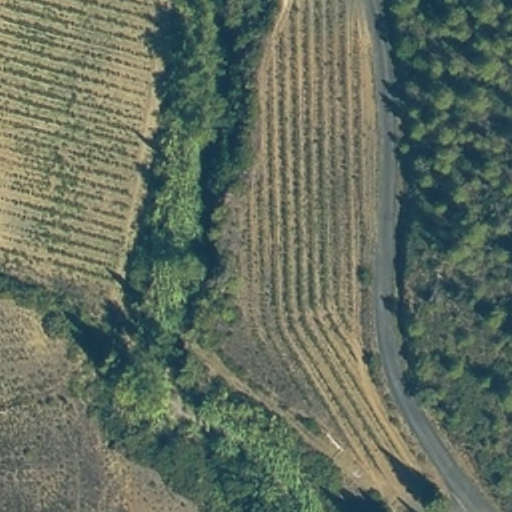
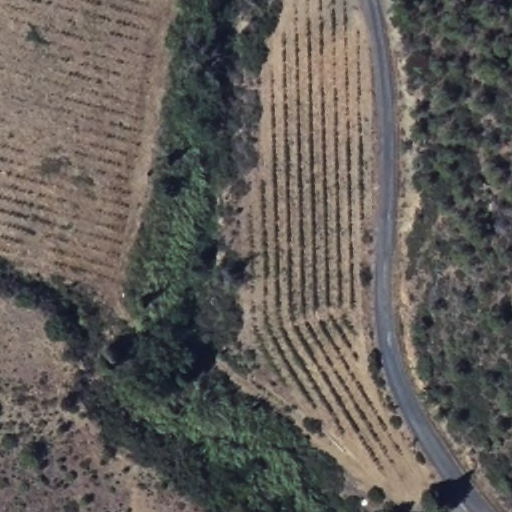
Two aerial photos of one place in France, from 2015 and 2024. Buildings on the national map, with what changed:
unchanged [(392,512),(374,512),(389,506),(392,512)]

